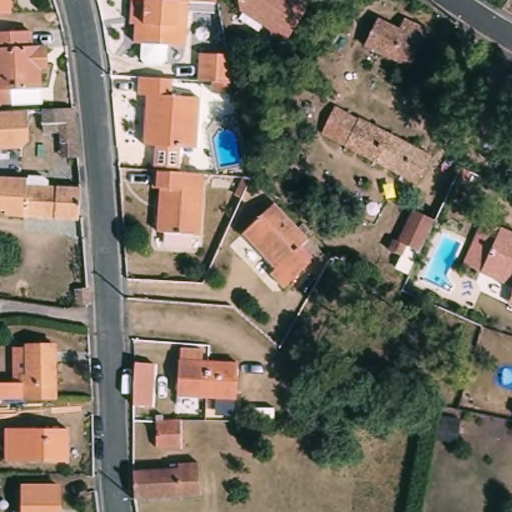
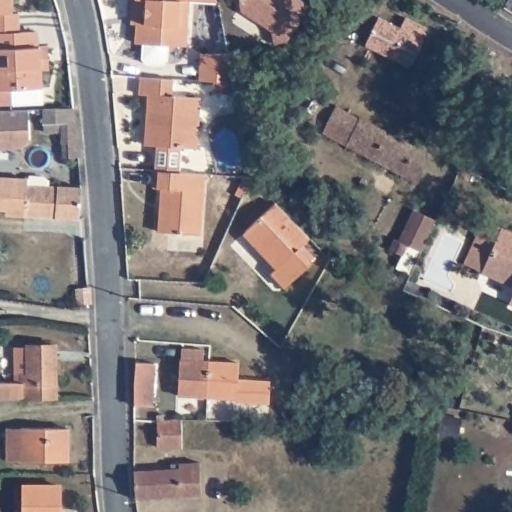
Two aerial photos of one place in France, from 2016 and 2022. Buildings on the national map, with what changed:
unchanged [(0,14),(0,0),(14,0),(15,14),(0,14)]
unchanged [(189,48),(140,45),(141,2),(134,2),(134,0),(189,0),(189,5),(191,5),(189,48)]
unchanged [(272,45),(270,30),(240,11),(238,0),(295,0),(307,8),(286,42),(272,45)]
unchanged [(365,49),(378,19),(400,29),(404,19),(428,30),(423,40),(410,69),(365,49)]
unchanged [(33,49),(39,48),(47,47),(48,70),(40,70),(41,105),(13,105),(0,106),(0,36),(32,35),(33,49)]
unchanged [(212,84),(197,84),(199,61),(199,56),(215,57),(227,57),(233,85),(235,96),(212,96),(212,84)]
unchanged [(177,100),(204,100),(201,150),(149,146),(151,98),(143,97),(144,80),(177,82),(177,100)]
unchanged [(341,107),(436,155),(422,184),(326,137),(341,107)]
unchanged [(0,112),(15,111),(29,111),(30,140),(23,149),(0,150),(0,112)]
unchanged [(63,158),(60,124),(74,123),(76,122),(77,142),(80,142),(80,157),(78,157),(63,158)]
unchanged [(50,125),(51,134),(45,134),(45,125),(50,125)]
unchanged [(460,167),(471,172),(467,181),(456,176),(460,167)]
unchanged [(202,236),(161,233),(165,190),(154,190),(154,172),(206,176),(202,236)]
unchanged [(9,215),(0,215),(0,179),(34,181),(34,186),(80,189),(79,219),(9,215)]
unchanged [(305,253),(316,266),(290,292),(278,279),(281,275),(249,240),(280,209),(315,242),(305,253)]
unchanged [(406,245),(401,255),(387,249),(392,239),(398,241),(412,209),(436,220),(421,251),(406,245)]
unchanged [(487,220),(512,232),(512,236),(493,277),(466,265),(487,220)]
unchanged [(512,236),(512,286),(493,277),(512,236)]
unchanged [(75,305),(74,290),(88,289),(90,288),(92,303),(86,305),(75,305)]
unchanged [(512,299),(512,304),(510,303),(512,299)]
unchanged [(19,385),(19,375),(17,349),(31,349),(32,347),(60,346),(61,399),(42,399),(27,400),(27,385),(19,385)]
unchanged [(237,400),(216,400),(216,396),(209,396),(199,396),(199,398),(179,397),(180,362),(210,363),(237,364),(237,400)]
unchanged [(154,365),(153,407),(135,406),(136,363),(154,365)]
unchanged [(158,447),(156,422),(156,416),(164,416),(164,422),(175,421),(181,420),(182,450),(158,447)]
unchanged [(62,461),(6,461),(6,430),(69,430),(69,440),(70,460),(62,461)]
unchanged [(180,470),(180,465),(200,464),(202,493),(136,498),(135,472),(180,470)]
unchanged [(24,490),(60,490),(61,512),(24,512),(24,490)]

